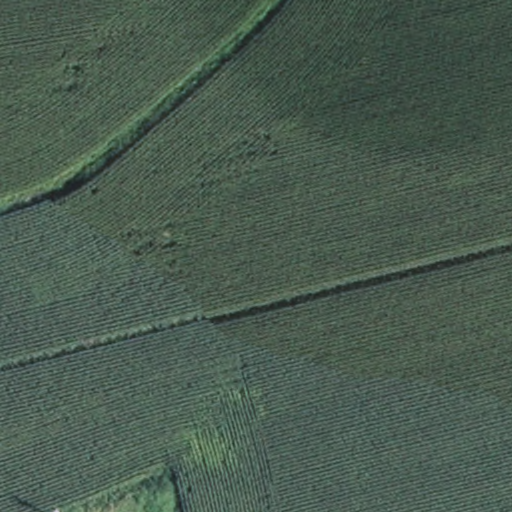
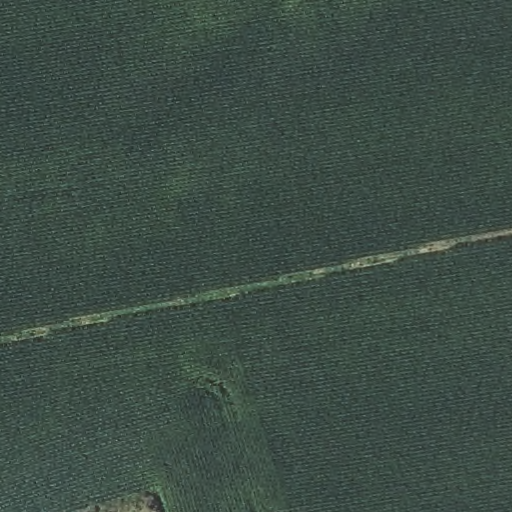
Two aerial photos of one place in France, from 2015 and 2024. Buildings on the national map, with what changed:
[]

